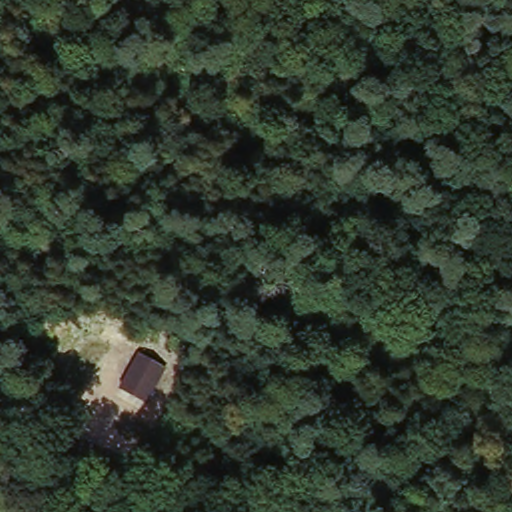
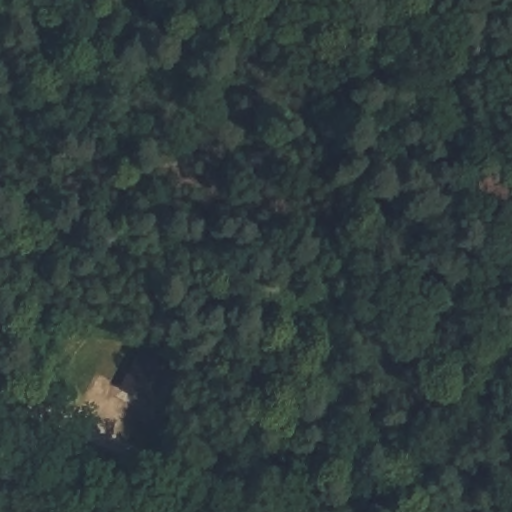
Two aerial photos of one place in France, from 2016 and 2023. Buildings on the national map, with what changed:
unchanged [(164,367),(144,402),(112,383),(130,348),(164,367)]

